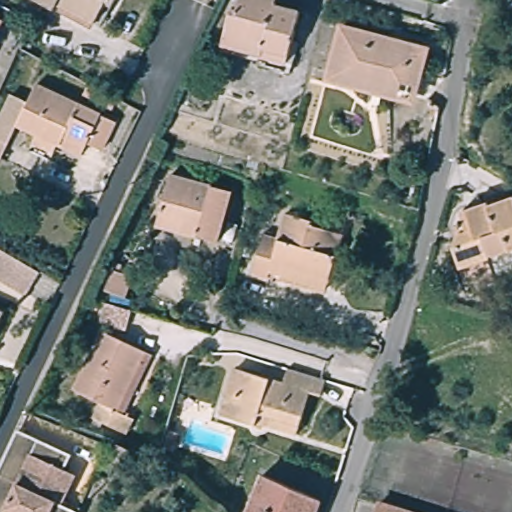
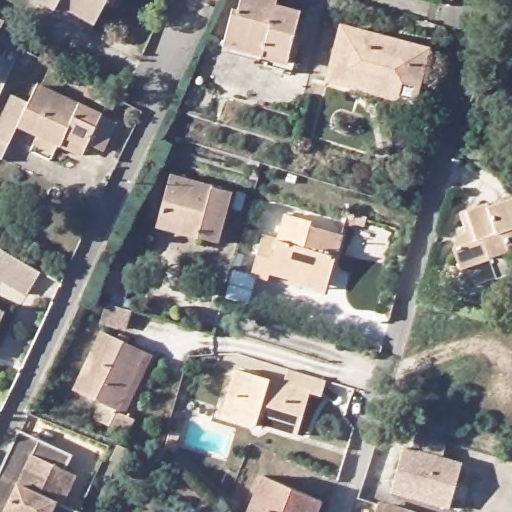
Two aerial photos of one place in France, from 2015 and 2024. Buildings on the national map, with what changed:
unchanged [(107,3),(95,22),(59,3),(55,10),(38,0),(117,0),(113,7),(107,3)]
unchanged [(299,13),(285,70),(259,64),(260,60),(222,50),(232,9),(238,10),(240,0),(276,0),(274,6),(299,13)]
unchanged [(7,26),(0,39),(0,22),(7,26)]
unchanged [(328,84),(331,73),(343,28),(421,49),(409,94),(407,104),(328,84)]
unchanged [(116,122),(103,151),(88,143),(82,155),(58,144),(53,152),(33,143),(37,135),(17,125),(0,158),(0,119),(12,96),(27,104),(37,85),(116,122)]
unchanged [(230,193),(217,244),(157,226),(170,175),(230,193)]
unchanged [(492,205),(512,197),(512,272),(500,276),(493,255),(465,265),(458,245),(462,230),(470,229),(464,210),(490,201),(492,205)]
unchanged [(315,221),(314,226),(346,235),(330,289),(274,272),(272,280),(256,275),(268,235),(283,240),(289,214),(315,221)]
unchanged [(20,262),(39,273),(27,295),(0,278),(0,250),(20,262)]
unchanged [(127,271),(124,278),(134,281),(127,303),(108,296),(117,268),(127,271)]
unchanged [(131,312),(125,330),(99,322),(104,304),(131,312)]
unchanged [(8,313),(0,331),(0,310),(8,313)]
unchanged [(154,351),(126,409),(138,415),(131,430),(98,414),(106,399),(79,385),(107,329),(154,351)]
unchanged [(266,426),(255,423),(254,427),(221,416),(236,370),(283,385),(288,370),(326,381),(321,396),(310,393),(300,425),(297,436),(266,426)]
unchanged [(27,427),(78,451),(69,471),(37,457),(23,485),(3,476),(27,427)]
new [(411,450),(414,436),(446,445),(443,458),(462,464),(449,508),(390,492),(403,447),(411,450)]
unchanged [(130,451),(123,465),(110,458),(117,445),(130,451)]
unchanged [(23,485),(37,457),(69,471),(80,477),(67,506),(80,512),(0,512),(0,483),(3,476),(23,485)]
unchanged [(263,476),(321,501),(316,512),(248,512),(263,476)]
unchanged [(386,503),(413,512),(383,512),(386,503)]

